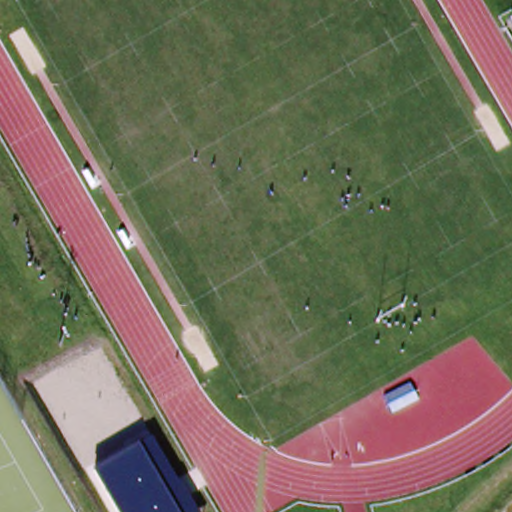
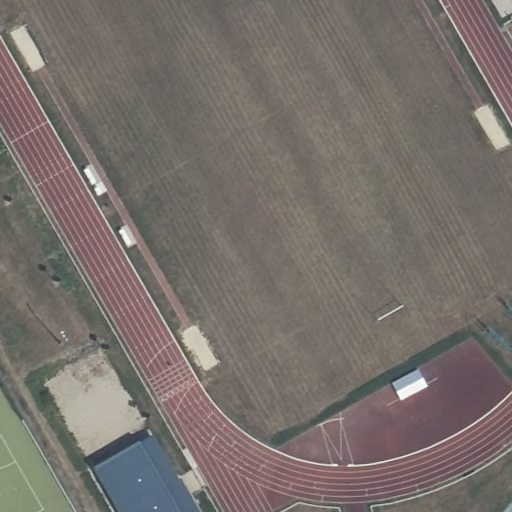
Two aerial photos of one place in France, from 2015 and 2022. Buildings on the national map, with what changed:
unchanged [(94,465),(151,435),(199,512),(120,512),(94,465)]

